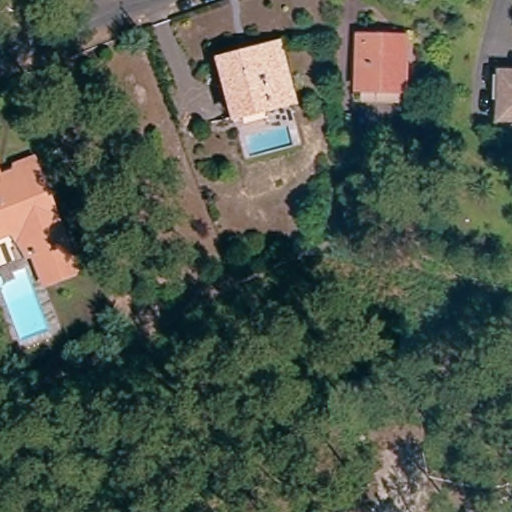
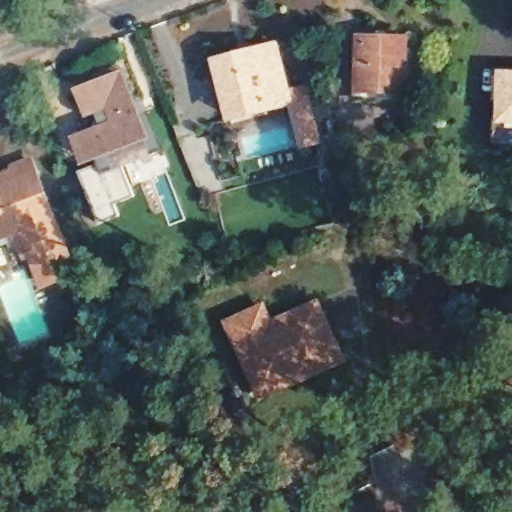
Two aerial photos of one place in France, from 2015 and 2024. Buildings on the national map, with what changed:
unchanged [(405,41),(403,92),(360,91),(361,40),(405,41)]
unchanged [(276,52),(291,108),(268,114),(267,110),(229,121),(215,68),(276,52)]
new [(116,202),(121,219),(103,227),(81,172),(100,165),(99,159),(82,165),(72,136),(102,124),(97,114),(89,118),(76,88),(126,69),(138,101),(146,98),(151,112),(149,112),(163,152),(125,167),(135,196),(116,202)]
unchanged [(502,120),(502,76),(512,76),(512,120),(502,120)]
unchanged [(40,300),(19,241),(0,247),(0,173),(34,159),(81,281),(40,300)]
unchanged [(411,214),(407,237),(396,235),(400,212),(411,214)]
new [(224,321),(266,301),(275,318),(320,297),(349,362),(261,402),(224,321)]

